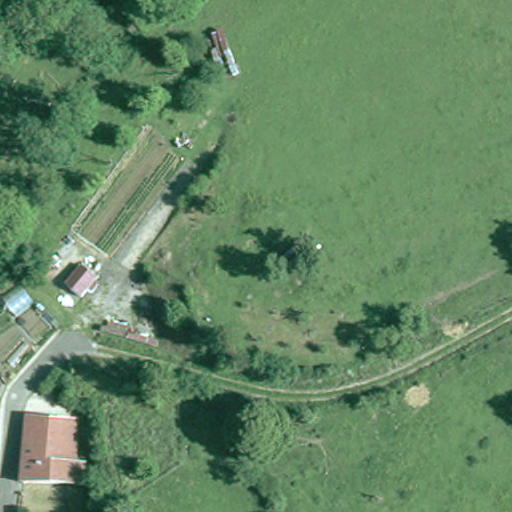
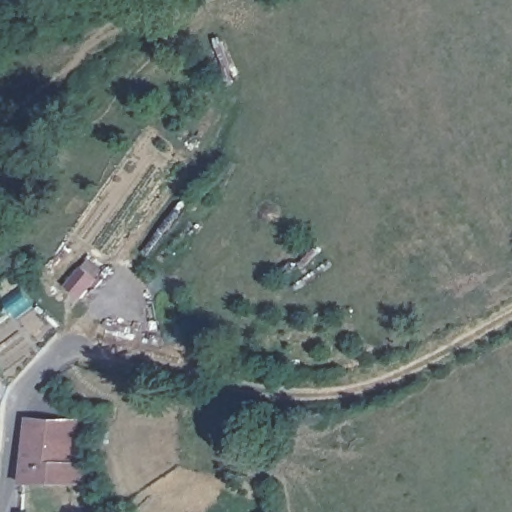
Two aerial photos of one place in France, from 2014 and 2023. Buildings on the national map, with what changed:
unchanged [(97,278),(82,298),(66,287),(81,267),(97,278)]
unchanged [(67,425),(82,423),(85,447),(78,447),(80,468),(88,468),(89,488),(28,488),(32,441),(33,422),(67,425)]

